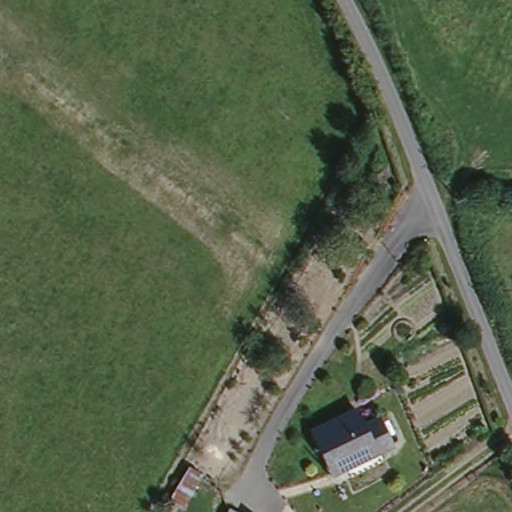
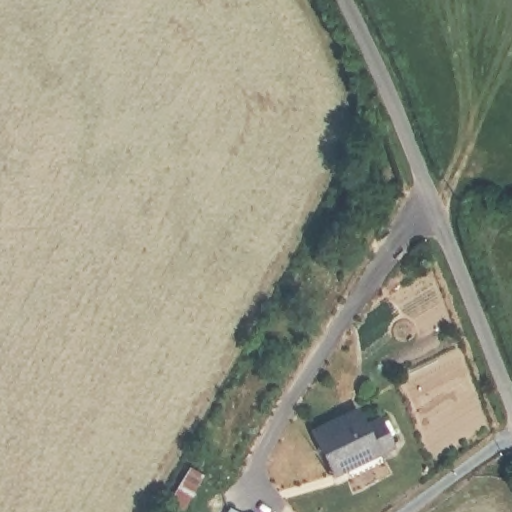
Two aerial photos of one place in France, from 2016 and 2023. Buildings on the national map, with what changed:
unchanged [(314,429),(361,407),(370,421),(384,417),(395,445),(335,473),(314,429)]
unchanged [(211,501),(205,512),(180,512),(193,490),(211,501)]

